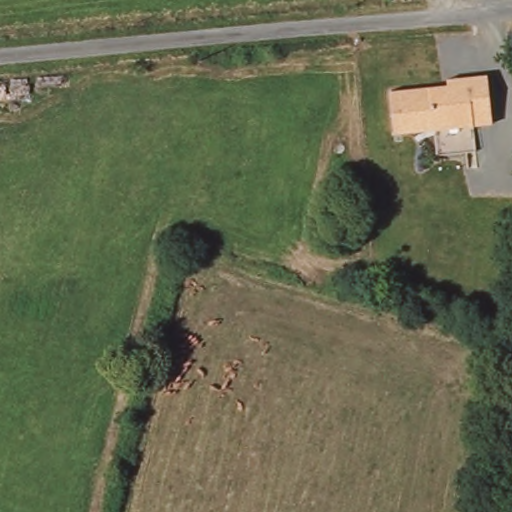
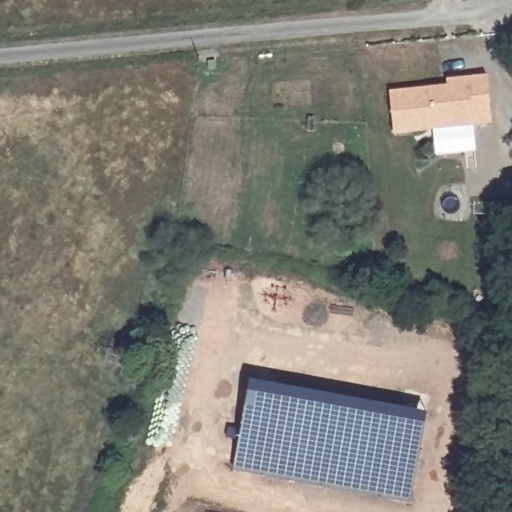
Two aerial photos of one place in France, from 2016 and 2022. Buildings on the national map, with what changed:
unchanged [(389,90),(447,85),(446,78),(486,75),(492,122),(395,133),(389,90)]
new [(229,426),(241,428),(250,380),(427,412),(410,501),(234,468),(239,439),(226,436),(229,426)]

